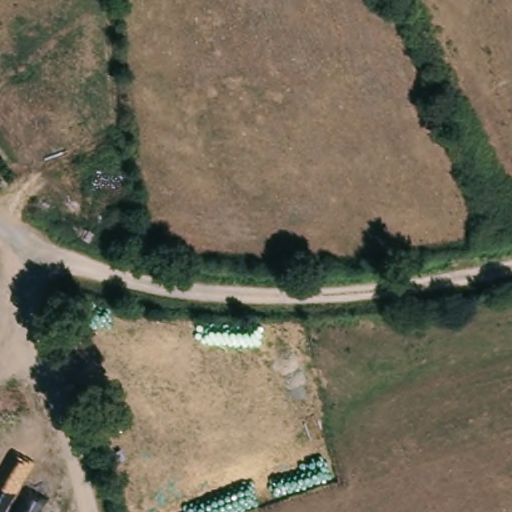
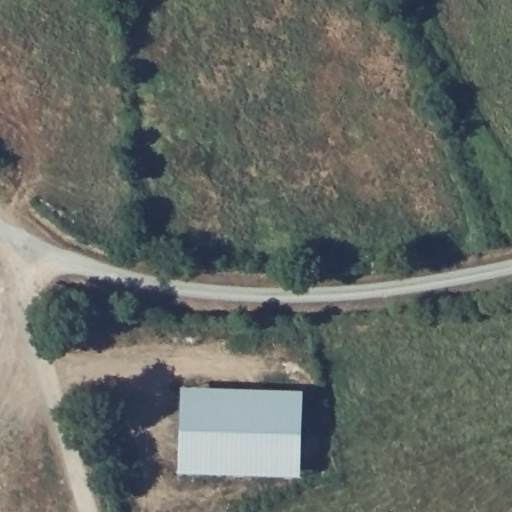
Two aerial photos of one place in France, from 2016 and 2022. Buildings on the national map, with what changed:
new [(182,389),(303,392),(300,477),(179,473),(182,389)]

